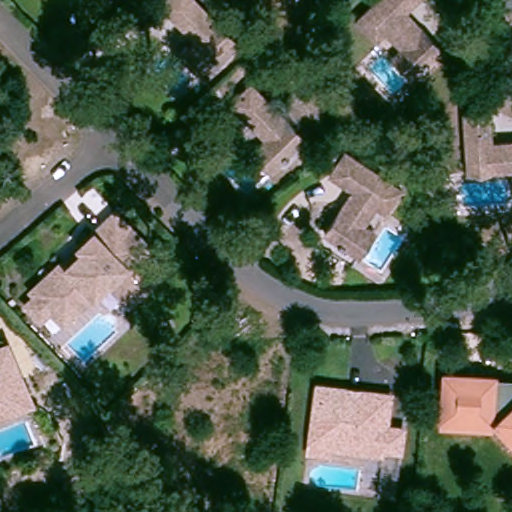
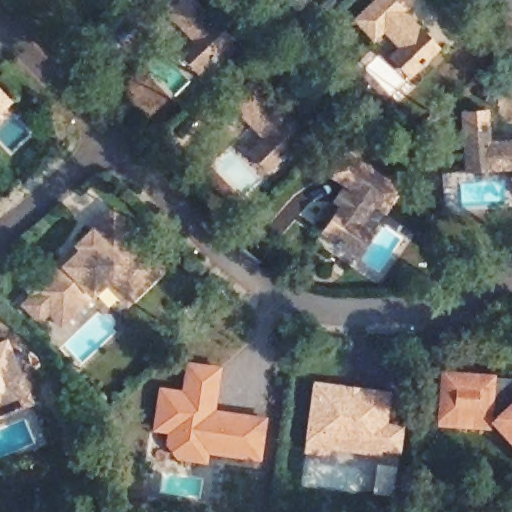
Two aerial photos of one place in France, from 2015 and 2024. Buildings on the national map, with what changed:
unchanged [(191,42),(158,5),(163,0),(190,0),(229,45),(204,66),(187,46),(191,42)]
unchanged [(382,62),(392,52),(375,35),(365,45),(346,25),(372,0),(412,0),(393,18),(428,55),(410,72),(400,81),(382,62)]
unchanged [(254,142),(259,138),(224,102),(244,84),(297,139),(273,162),(254,142)]
new [(0,115),(0,88),(13,102),(0,115)]
unchanged [(463,169),(459,110),(487,108),(489,140),(512,139),(512,166),(463,169)]
unchanged [(359,251),(346,244),(325,230),(353,186),(327,170),(342,146),(390,177),(400,185),(399,187),(385,207),(374,200),(361,220),(374,228),(359,251)]
unchanged [(29,305),(39,296),(34,291),(65,262),(82,246),(97,232),(99,235),(120,214),(150,245),(147,249),(168,270),(132,305),(111,283),(67,325),(54,312),(45,321),(36,313),(29,305)]
unchanged [(29,401),(0,414),(0,344),(4,342),(29,401)]
new [(175,460),(166,445),(167,435),(152,432),(159,387),(182,390),(185,361),(222,366),(215,411),(251,416),(245,460),(208,455),(207,466),(175,460)]
unchanged [(495,427),(441,425),(443,370),(497,375),(496,379),(512,380),(512,444),(495,427)]
unchanged [(326,450),(325,455),(304,451),(306,439),(313,385),(344,389),(346,393),(351,395),(356,390),(386,395),(382,426),(399,428),(396,451),(377,449),(376,456),(326,450)]

